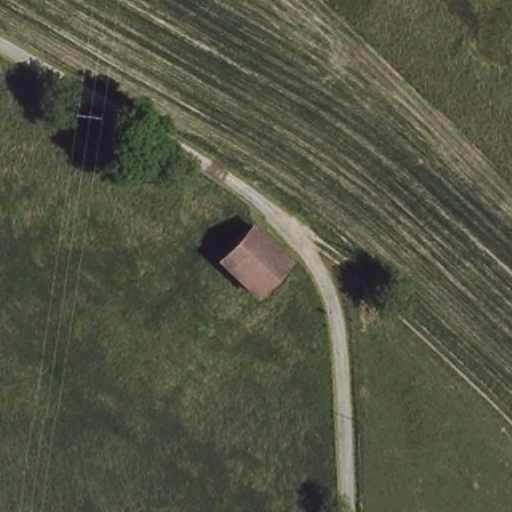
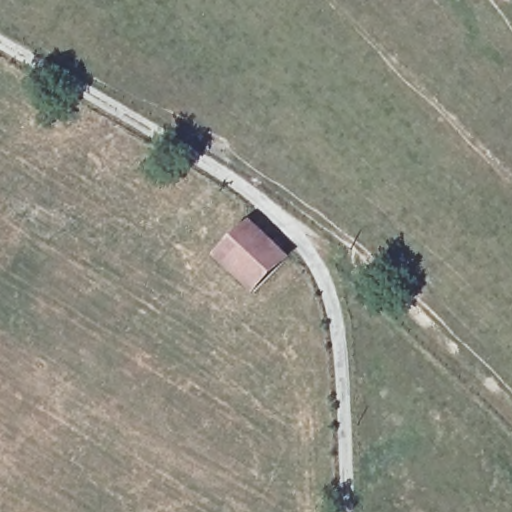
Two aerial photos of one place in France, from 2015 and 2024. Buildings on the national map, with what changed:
unchanged [(250,229),(286,265),(255,298),(217,263),(250,229)]

